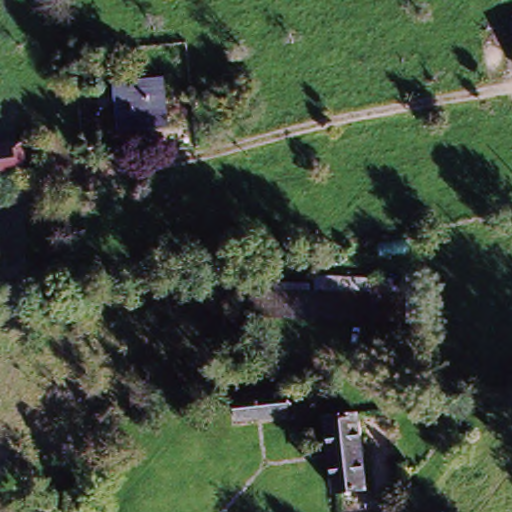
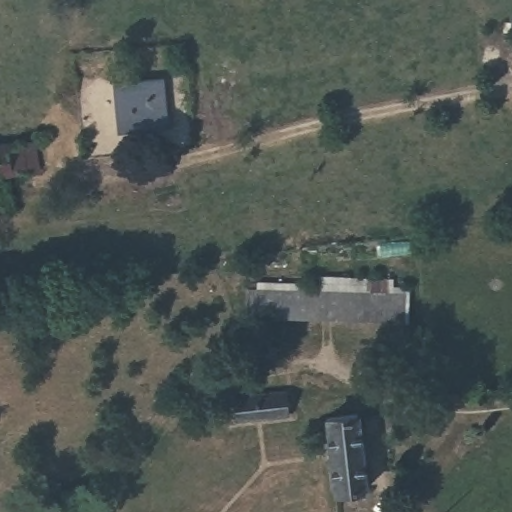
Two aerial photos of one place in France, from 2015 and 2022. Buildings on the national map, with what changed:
unchanged [(512,18),(512,37),(510,18),(512,18)]
unchanged [(163,81),(167,132),(121,136),(118,86),(163,81)]
unchanged [(45,171),(0,176),(0,146),(41,140),(45,171)]
unchanged [(401,297),(396,325),(243,311),(247,281),(401,297)]
unchanged [(281,377),(285,406),(231,413),(228,383),(281,377)]
unchanged [(360,416),(366,490),(328,494),(322,419),(360,416)]

